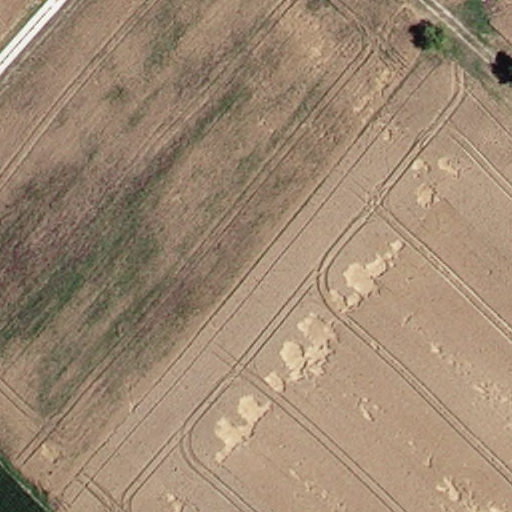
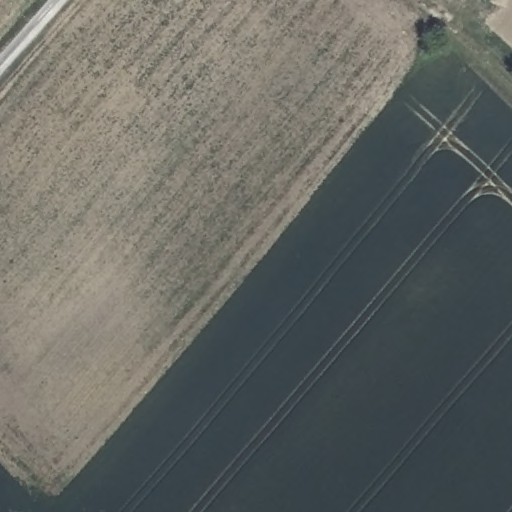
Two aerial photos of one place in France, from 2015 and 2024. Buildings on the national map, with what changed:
[]

